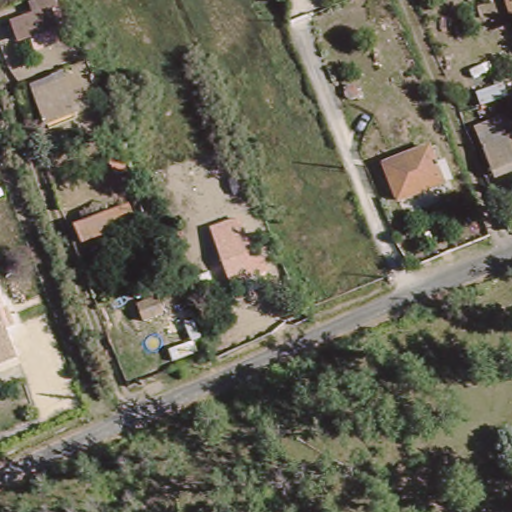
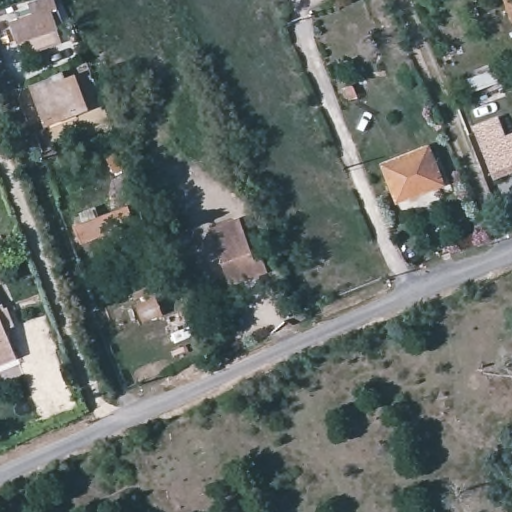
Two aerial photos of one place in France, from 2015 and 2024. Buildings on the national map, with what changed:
unchanged [(7,17),(30,10),(26,0),(51,0),(58,24),(11,37),(7,17)]
unchanged [(504,0),(512,0),(512,19),(504,0)]
unchanged [(390,2),(397,20),(377,27),(370,9),(390,2)]
unchanged [(79,61),(88,57),(90,64),(81,67),(79,61)]
unchanged [(32,80),(50,75),(51,72),(62,67),(66,74),(77,70),(86,97),(88,106),(47,120),(44,113),(32,80)]
unchanged [(497,114),(508,131),(512,129),(512,166),(494,174),(475,122),(497,114)]
unchanged [(193,133),(206,127),(210,138),(198,143),(193,133)]
unchanged [(381,159),(423,146),(437,178),(395,194),(381,159)]
unchanged [(75,226),(85,222),(82,212),(123,196),(134,225),(82,244),(75,226)]
unchanged [(239,213),(245,229),(254,255),(263,253),(267,267),(232,279),(212,222),(230,216),(239,213)]
unchanged [(140,306),(157,300),(162,313),(144,320),(140,306)]
unchanged [(0,361),(0,310),(12,341),(16,354),(4,359),(0,361)]
unchanged [(151,342),(182,331),(185,340),(155,351),(151,342)]

